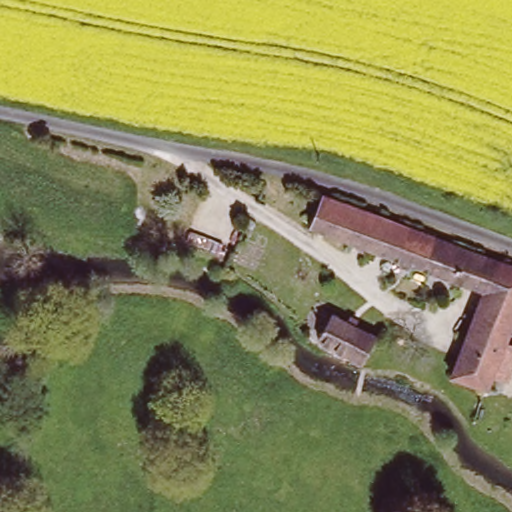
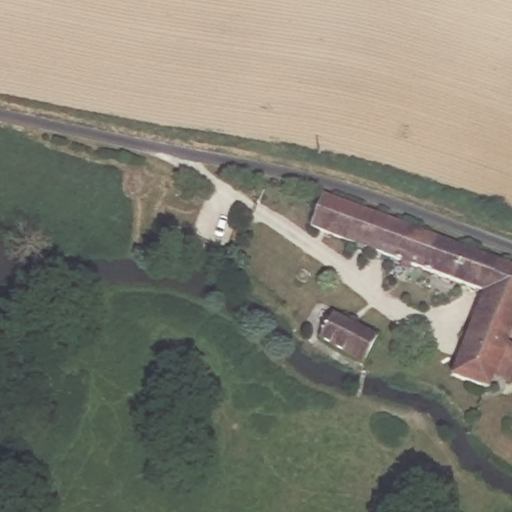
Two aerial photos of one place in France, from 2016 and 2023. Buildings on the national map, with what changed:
unchanged [(510,343),(493,393),(455,381),(483,293),(312,227),(325,194),(512,264),(512,336),(510,343)]
unchanged [(333,316),(378,336),(365,367),(320,347),(333,316)]

